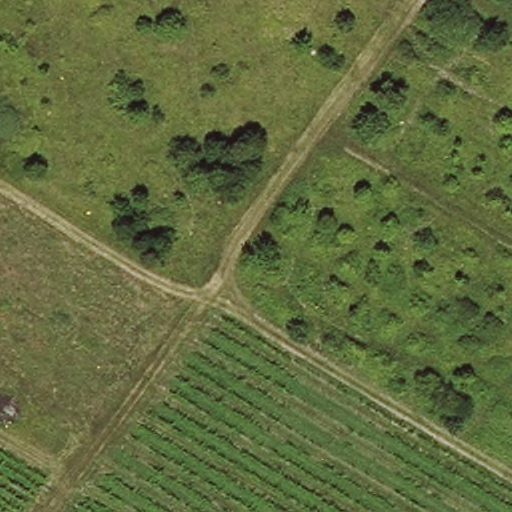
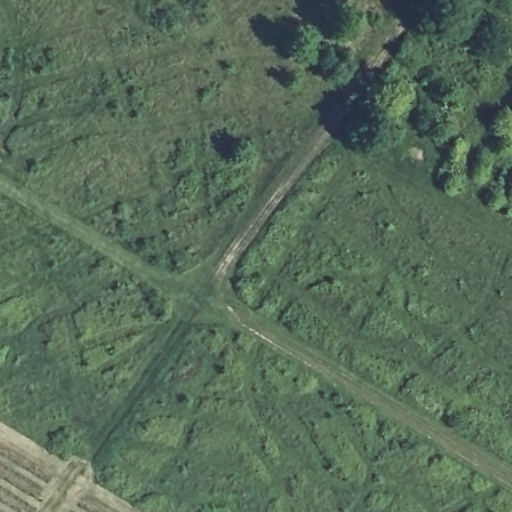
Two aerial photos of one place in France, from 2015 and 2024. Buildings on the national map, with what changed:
[]

